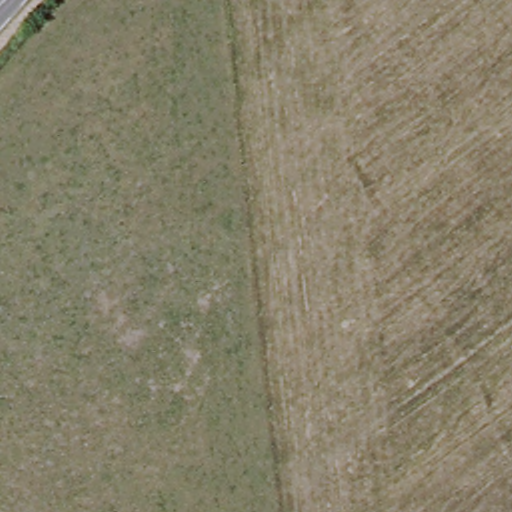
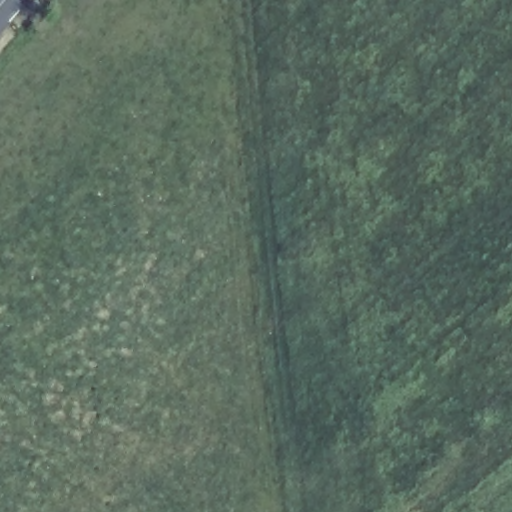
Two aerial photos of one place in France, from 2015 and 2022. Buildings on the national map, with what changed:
[]

